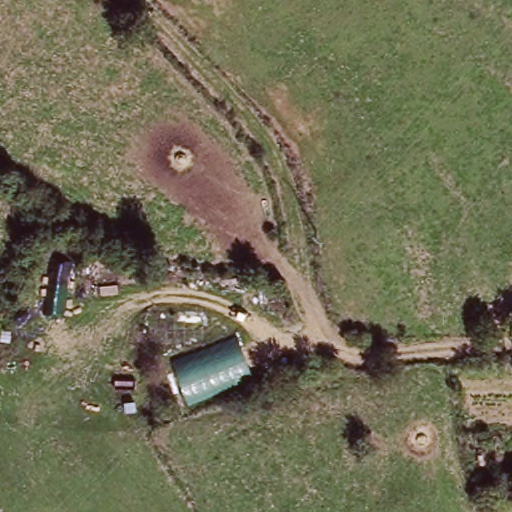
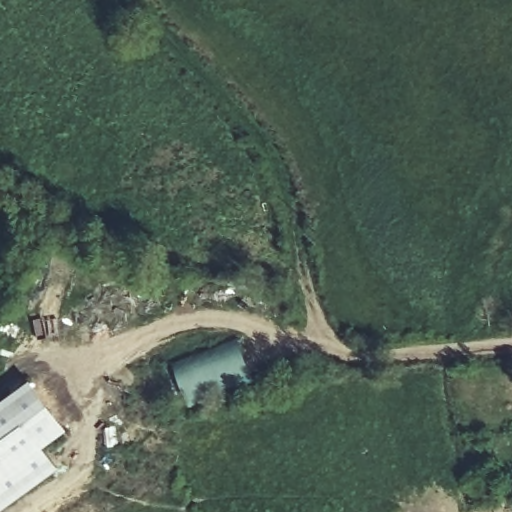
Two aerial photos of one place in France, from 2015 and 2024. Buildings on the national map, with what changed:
demolished [(211,314),(210,340),(160,343),(161,316),(211,314)]
unchanged [(257,381),(194,407),(178,363),(242,335),(257,381)]
new [(0,512),(0,402),(31,379),(68,431),(44,449),(59,469),(0,512)]

